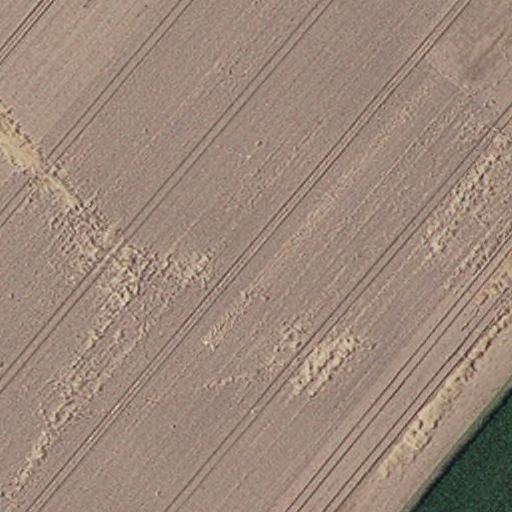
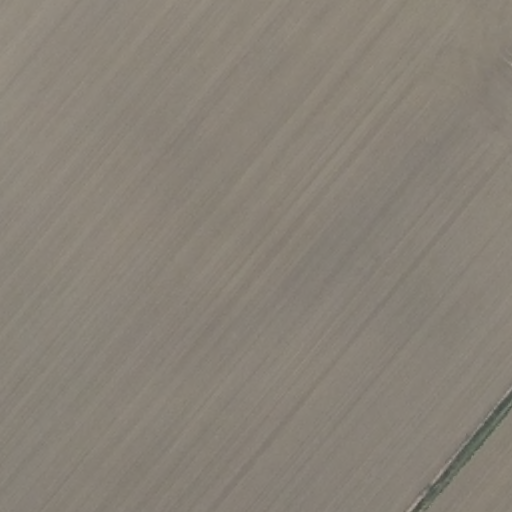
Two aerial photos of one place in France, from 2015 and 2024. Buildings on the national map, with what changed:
[]

